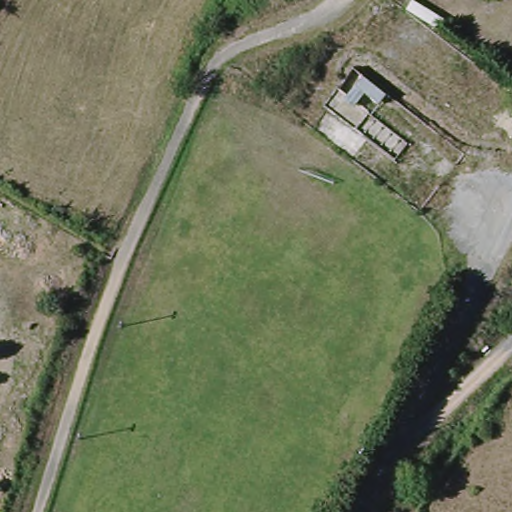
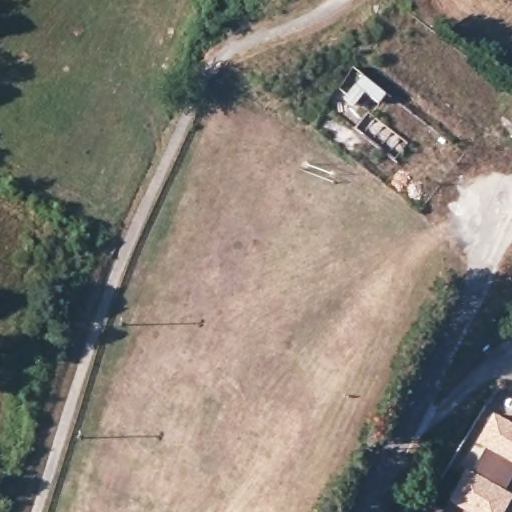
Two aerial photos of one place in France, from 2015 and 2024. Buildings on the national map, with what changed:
new [(387,94),(379,105),(364,93),(354,107),(343,100),(346,95),(339,90),(351,69),(387,94)]
new [(512,424),(512,481),(506,493),(512,496),(512,500),(505,512),(466,512),(449,502),(467,470),(473,473),(487,449),(477,443),(494,414),(512,424)]

